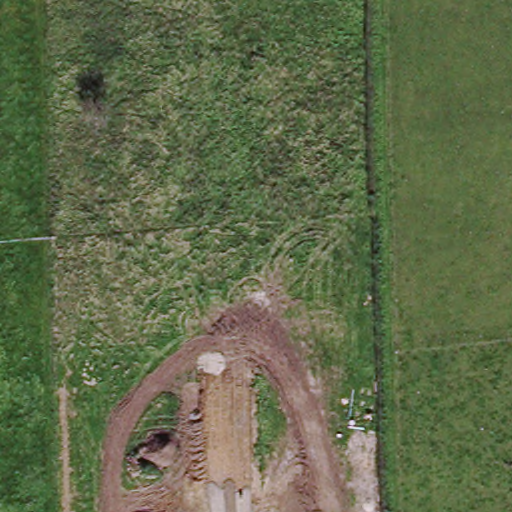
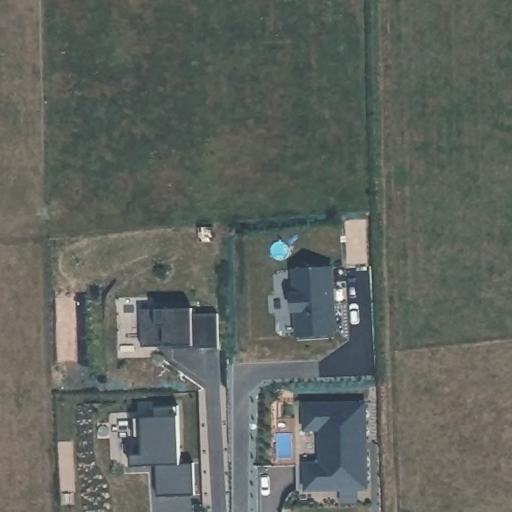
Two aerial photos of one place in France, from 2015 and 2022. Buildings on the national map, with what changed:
new [(293,293),(292,269),(330,267),(332,305),(331,305),(331,314),(333,314),(333,328),(329,333),(295,335),(294,310),(291,310),(290,293),(293,293)]
new [(195,311),(196,351),(175,352),(175,349),(145,350),(144,312),(195,311)]
new [(363,403),(365,488),(305,490),(304,465),(319,464),(319,429),(304,430),(303,405),(363,403)]
new [(136,452),(143,451),(142,436),(139,436),(139,415),(158,415),(158,405),(183,405),(184,462),(198,462),(198,495),(161,495),(161,459),(153,459),(153,464),(136,465),(136,452)]

